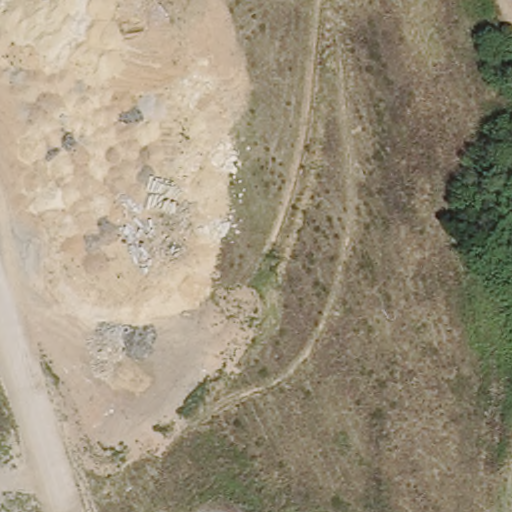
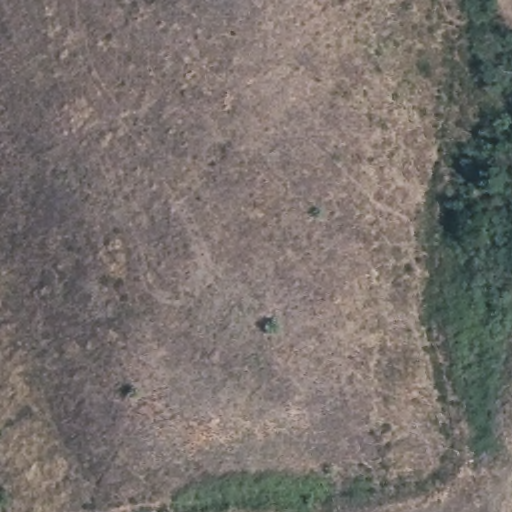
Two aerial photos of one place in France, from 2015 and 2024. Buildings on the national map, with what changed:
unchanged [(497,144),(508,149),(512,142),(512,166),(492,155),(497,144)]

